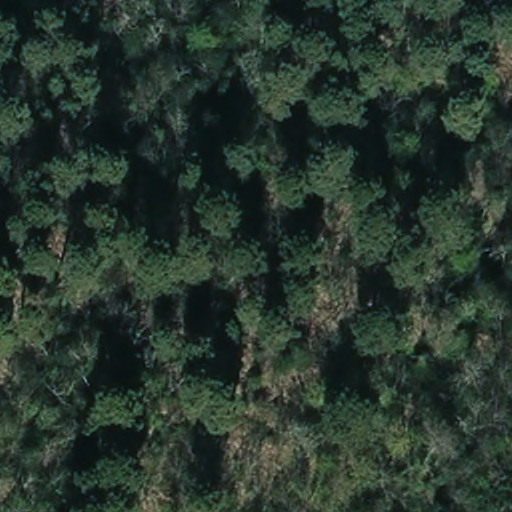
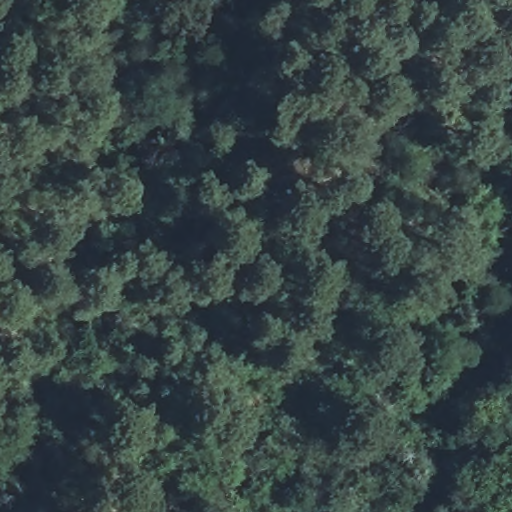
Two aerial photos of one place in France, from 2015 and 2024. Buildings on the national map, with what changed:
[]

